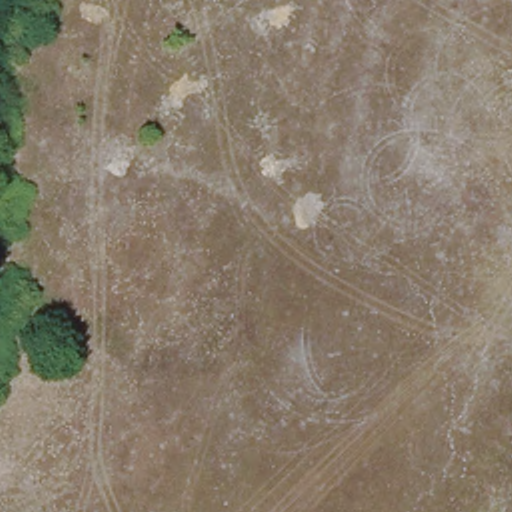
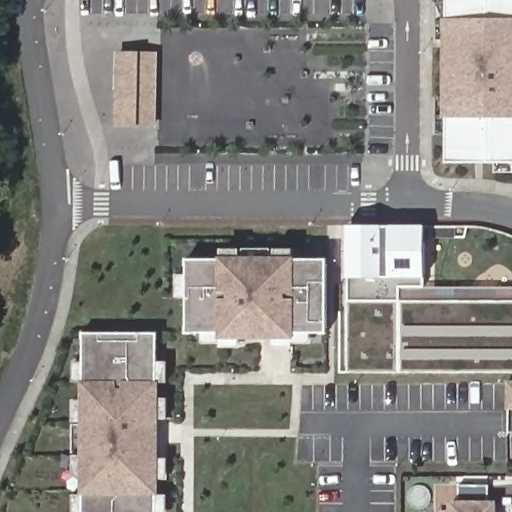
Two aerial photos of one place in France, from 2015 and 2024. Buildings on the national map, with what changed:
new [(449,162),(449,117),(446,117),(445,19),(450,19),(450,0),(512,0),(512,161),(449,162)]
new [(136,126),(115,126),(116,52),(139,52),(157,52),(156,126),(136,126)]
new [(348,225),(426,225),(426,297),(402,297),(402,311),(512,311),(512,372),(347,371),(348,225)]
new [(187,331),(187,259),(218,259),(218,257),(294,256),(294,259),(327,259),(327,332),(295,332),(295,338),(218,340),(219,331),(187,331)]
new [(402,297),(426,297),(512,297),(512,311),(402,311),(402,297)]
new [(159,383),(160,494),(156,494),(156,512),(84,512),(84,495),(80,495),(80,380),(85,380),(84,333),(158,333),(156,383),(159,383)]
new [(506,410),(506,380),(512,380),(512,410),(506,410)]
new [(460,502),(458,485),(488,485),(489,501),(496,500),(496,512),(448,512),(447,502),(460,502)]

